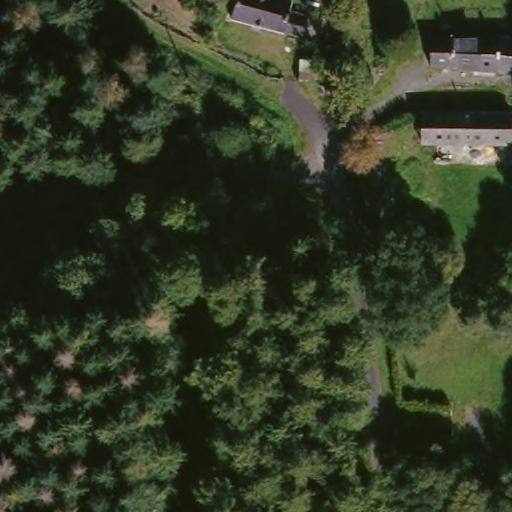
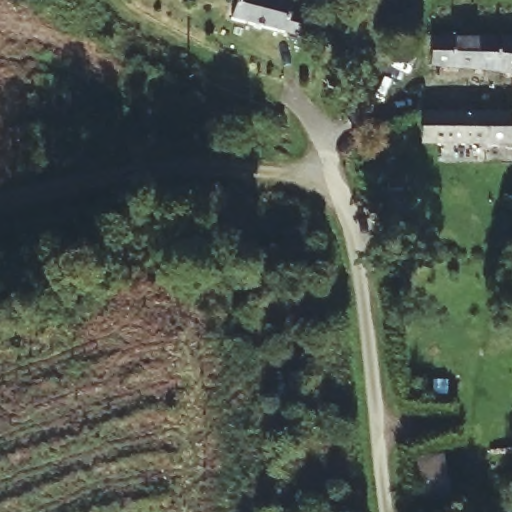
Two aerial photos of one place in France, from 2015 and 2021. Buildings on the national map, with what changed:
unchanged [(228,28),(231,0),(269,0),(285,4),(281,23),(296,27),(315,32),(314,49),(294,44),(228,28)]
unchanged [(433,40),(512,47),(512,76),(433,70),(433,40)]
unchanged [(505,116),(504,146),(419,145),(419,114),(505,116)]

